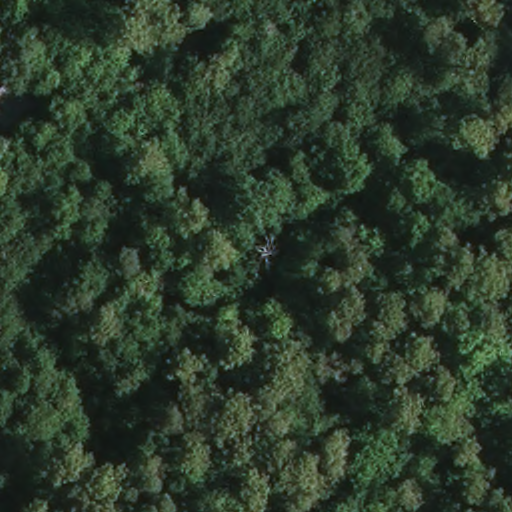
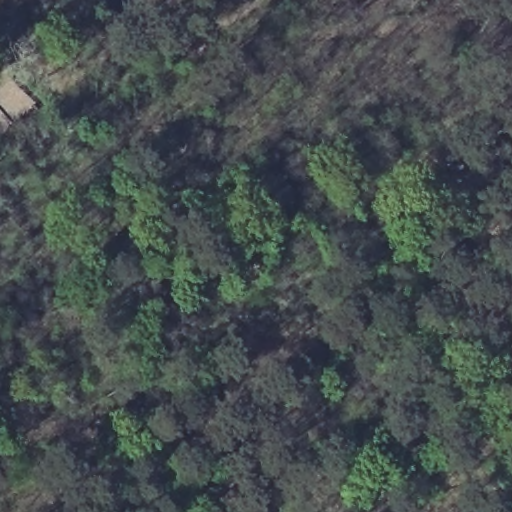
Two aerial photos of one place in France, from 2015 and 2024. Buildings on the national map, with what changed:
unchanged [(19,82),(38,104),(26,114),(23,110),(7,123),(6,122),(0,129),(0,99),(19,82)]

